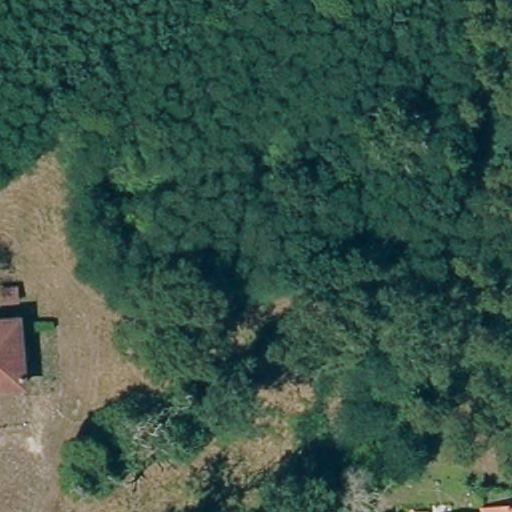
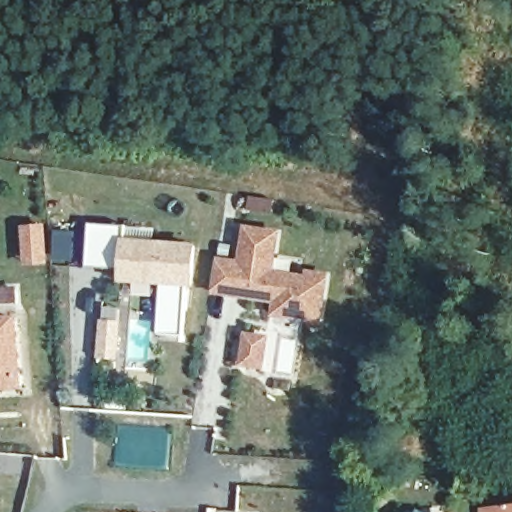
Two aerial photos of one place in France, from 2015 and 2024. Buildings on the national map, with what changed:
new [(159,332),(164,285),(118,281),(120,267),(86,265),(90,223),(128,225),(127,238),(198,243),(195,288),(188,287),(185,334),(159,332)]
new [(272,315),(274,302),(212,294),(217,256),(238,259),(244,223),(282,228),(276,269),(306,274),(307,267),(330,270),(322,323),(272,315)]
new [(43,229),(45,263),(25,264),(23,230),(43,229)]
unchanged [(24,375),(0,375),(0,309),(26,309),(24,375)]
unchanged [(512,509),(512,512),(487,512),(512,509)]

